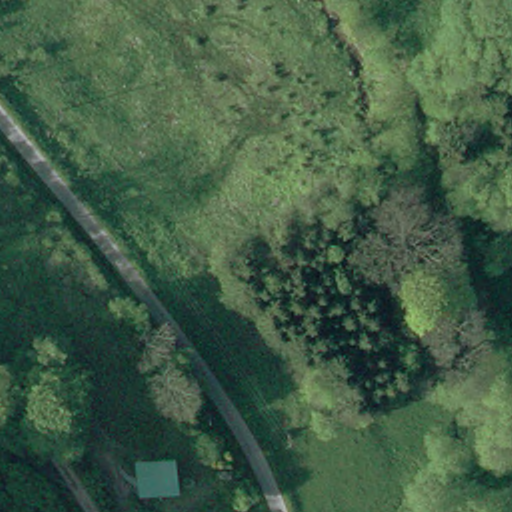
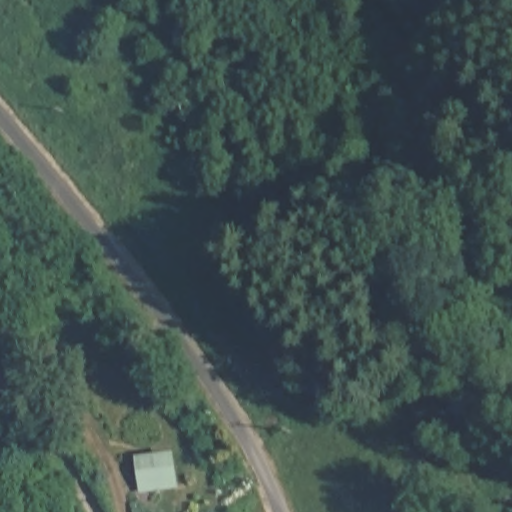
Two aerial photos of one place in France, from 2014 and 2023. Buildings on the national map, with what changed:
unchanged [(142,482),(137,458),(163,453),(169,477),(142,482)]

